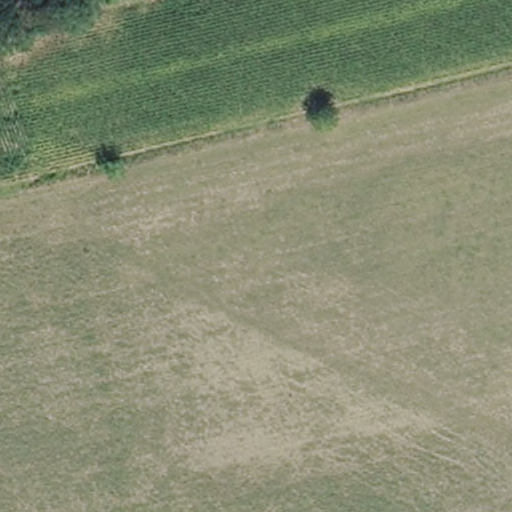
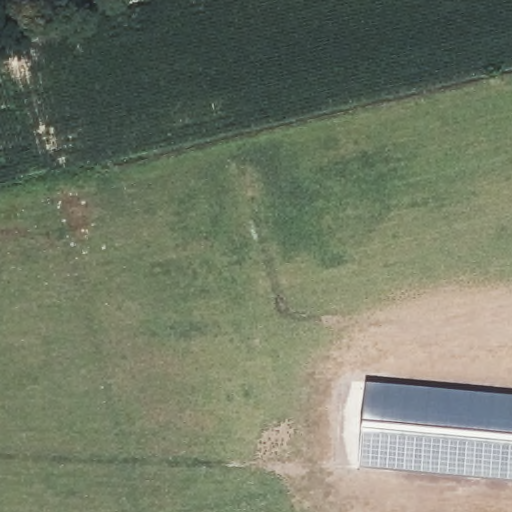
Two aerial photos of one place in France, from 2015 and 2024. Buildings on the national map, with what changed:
new [(512,394),(512,480),(361,466),(368,382),(512,394)]

